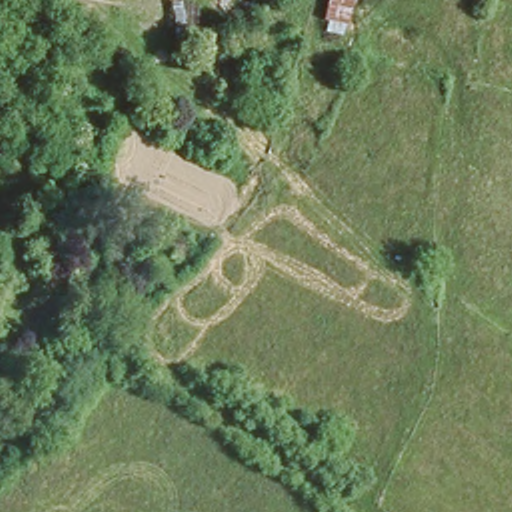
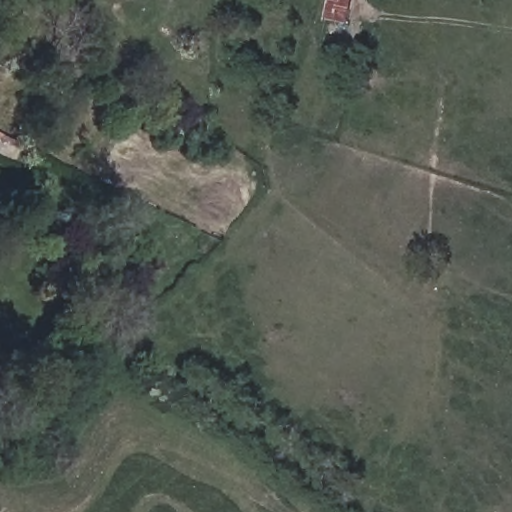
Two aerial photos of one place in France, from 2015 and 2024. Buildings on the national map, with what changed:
unchanged [(236,22),(239,36),(221,39),(219,25),(236,22)]

